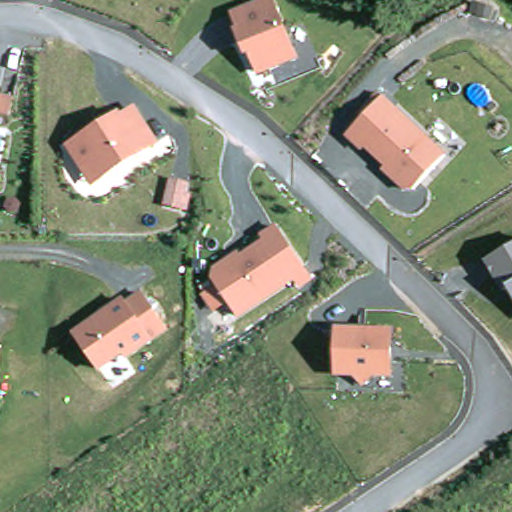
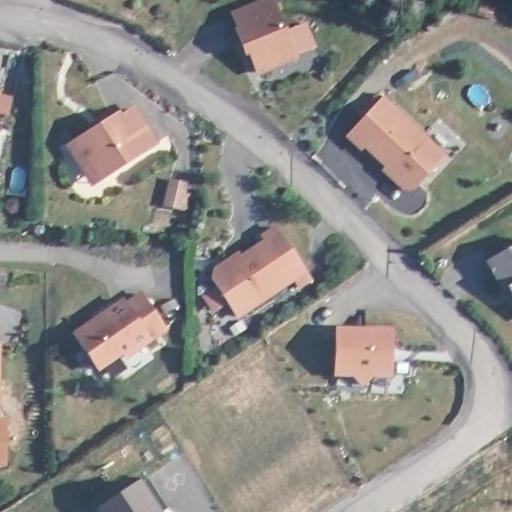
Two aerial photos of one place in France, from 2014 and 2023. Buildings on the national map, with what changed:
unchanged [(273,0),(299,58),(259,75),(231,11),(257,0),(273,0)]
unchanged [(0,107),(0,87),(5,88),(0,107)]
unchanged [(384,92),(450,152),(412,195),(346,135),(384,92)]
unchanged [(133,103),(160,142),(94,187),(64,145),(133,103)]
unchanged [(277,222),(307,270),(238,317),(204,271),(277,222)]
unchanged [(485,262),(512,248),(512,301),(485,262)]
unchanged [(170,331),(99,372),(70,331),(140,292),(170,331)]
unchanged [(393,325),(393,375),(333,373),(334,325),(393,325)]
new [(147,473),(169,506),(162,512),(100,512),(97,507),(140,477),(147,473)]

